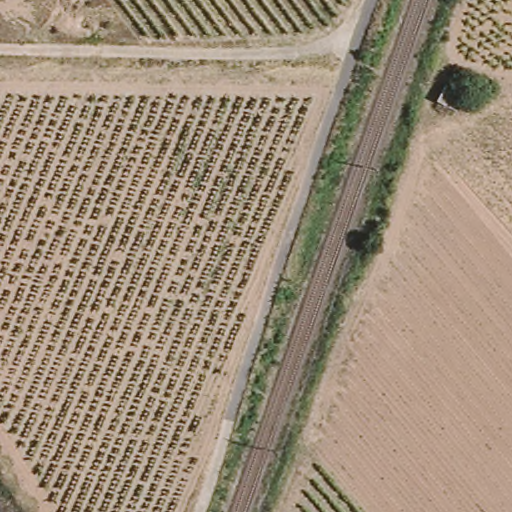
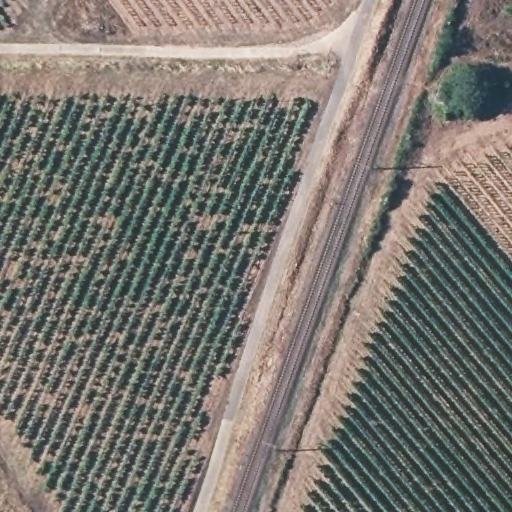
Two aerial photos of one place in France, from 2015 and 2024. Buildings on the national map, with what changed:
unchanged [(451,110),(446,116),(437,108),(454,91),(467,103),(457,115),(451,110)]

